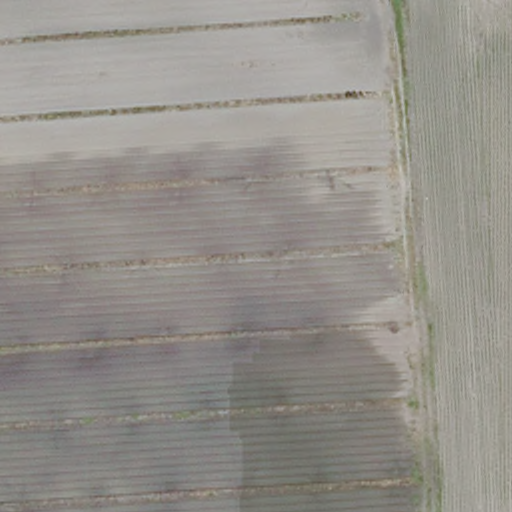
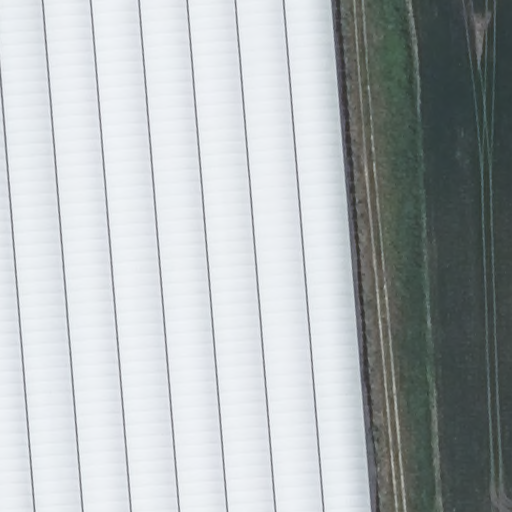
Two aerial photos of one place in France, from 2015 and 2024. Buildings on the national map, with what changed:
new [(337,0),(378,512),(0,512),(0,0),(337,0)]

